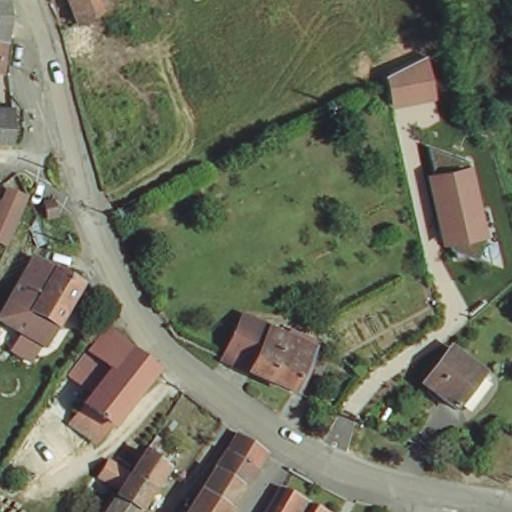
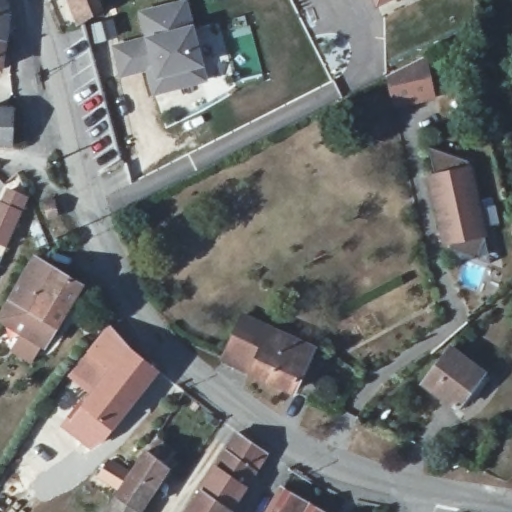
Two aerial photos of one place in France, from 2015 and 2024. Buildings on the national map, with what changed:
unchanged [(0,0),(8,0),(9,9),(0,7),(0,0)]
unchanged [(67,0),(99,0),(103,10),(77,25),(67,0)]
new [(378,0),(388,0),(380,4),(378,0)]
new [(124,75),(118,48),(151,39),(144,13),(187,2),(194,29),(207,80),(200,82),(157,93),(153,76),(151,68),(124,75)]
unchanged [(5,31),(0,30),(0,7),(9,9),(8,21),(5,31)]
unchanged [(0,57),(0,30),(5,31),(0,57)]
unchanged [(31,49),(31,40),(31,32),(41,37),(41,47),(31,49)]
unchanged [(427,55),(437,99),(392,109),(386,77),(427,55)]
unchanged [(0,140),(0,105),(13,106),(11,124),(10,141),(0,140)]
unchanged [(452,245),(443,247),(426,177),(436,174),(428,146),(472,163),(489,239),(482,257),(456,261),(452,245)]
unchanged [(0,195),(8,199),(14,187),(25,191),(18,210),(14,220),(11,227),(7,237),(0,234),(0,195)]
unchanged [(24,336),(2,327),(38,256),(60,266),(24,336)]
unchanged [(67,270),(86,283),(83,289),(51,344),(44,340),(41,345),(24,336),(60,266),(67,270)]
unchanged [(241,368),(213,356),(233,316),(264,328),(256,340),(241,368)]
unchanged [(263,343),(269,330),(286,340),(291,331),(305,337),(339,353),(334,364),(312,353),(292,391),(268,380),(256,375),(241,368),(256,340),(263,343)]
unchanged [(96,355),(116,332),(126,340),(139,352),(158,367),(143,389),(102,359),(96,355)]
unchanged [(452,350),(484,371),(479,381),(462,407),(454,403),(425,383),(452,350)]
unchanged [(143,389),(105,443),(78,423),(98,396),(83,384),(102,359),(143,389)]
unchanged [(243,442),(257,452),(220,512),(185,512),(236,436),(243,442)]
unchanged [(173,468),(144,512),(110,512),(151,451),(173,468)]
unchanged [(112,460),(118,463),(123,455),(135,461),(124,481),(105,471),(112,460)]
unchanged [(333,512),(268,512),(287,483),(333,512)]

